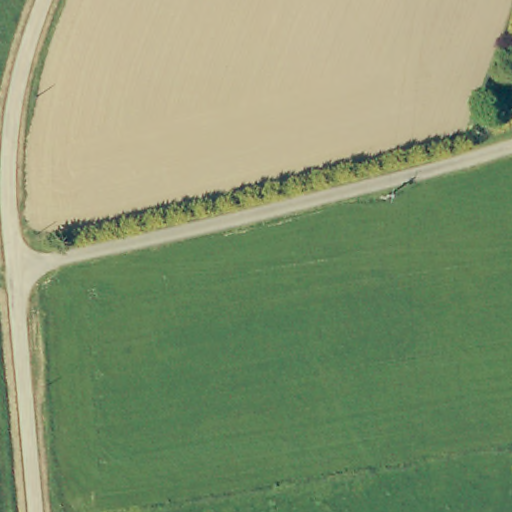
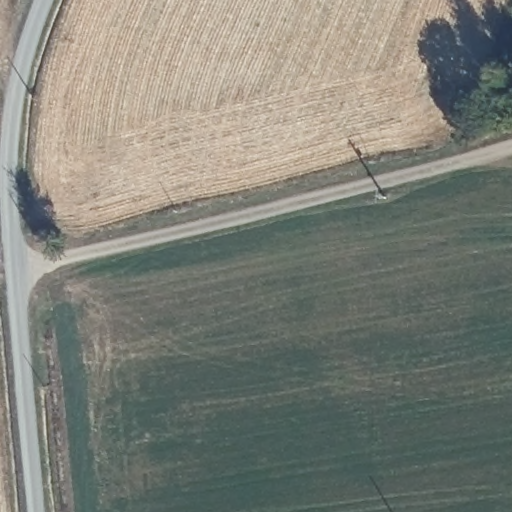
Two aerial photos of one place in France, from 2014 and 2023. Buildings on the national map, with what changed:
[]

